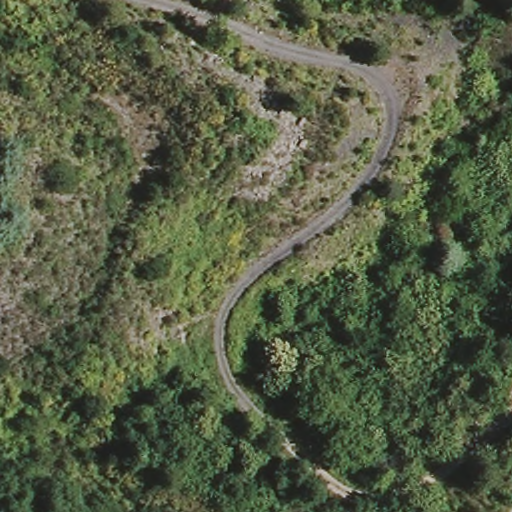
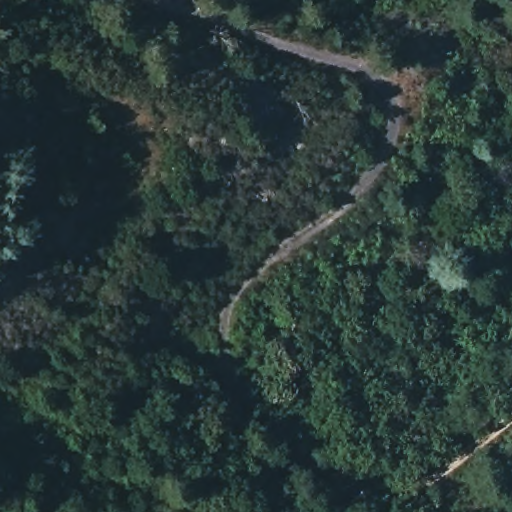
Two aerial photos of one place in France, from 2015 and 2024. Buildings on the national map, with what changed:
unchanged [(226,81),(219,69),(231,60),(240,71),(226,81)]

